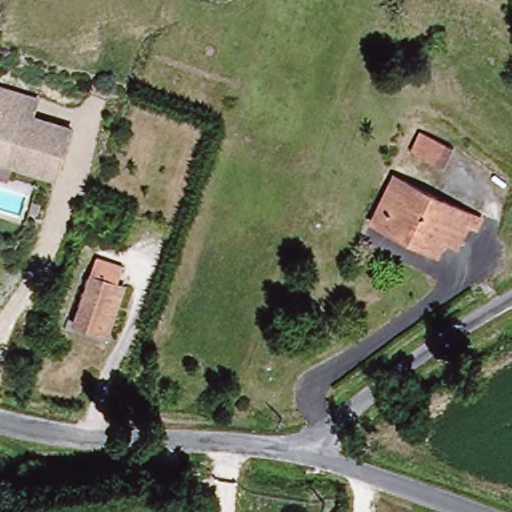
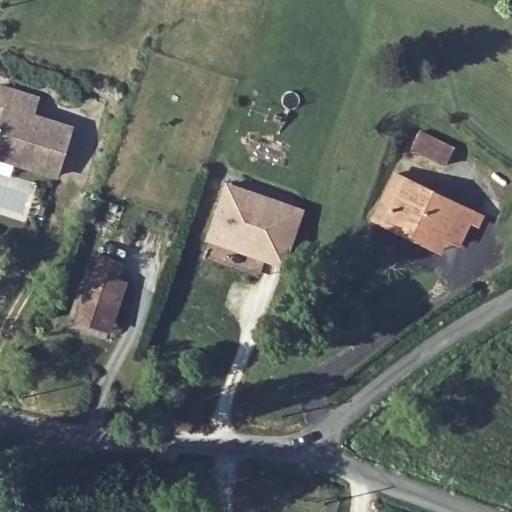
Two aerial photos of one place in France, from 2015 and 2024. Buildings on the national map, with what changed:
unchanged [(0,160),(0,114),(2,108),(0,107),(0,87),(26,95),(35,98),(29,115),(69,127),(52,176),(0,160)]
unchanged [(380,233),(368,228),(389,172),(402,176),(474,206),(469,222),(464,220),(455,240),(435,233),(430,249),(405,241),(380,233)]
new [(304,209),(284,268),(204,241),(224,183),(304,209)]
unchanged [(69,315),(85,269),(92,250),(117,259),(109,278),(94,323),(69,315)]

